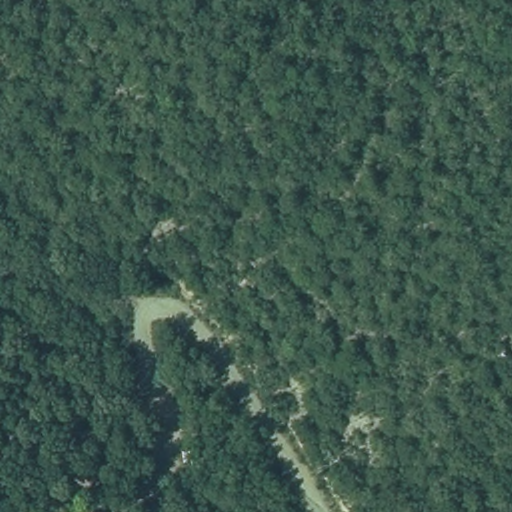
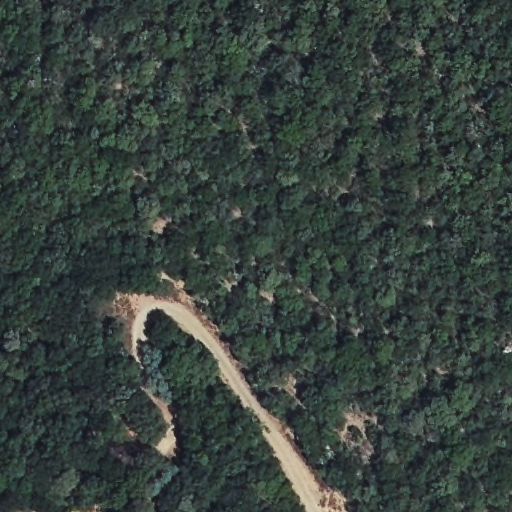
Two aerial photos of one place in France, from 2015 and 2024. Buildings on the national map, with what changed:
unchanged [(97,512),(86,512),(97,509),(97,512)]

